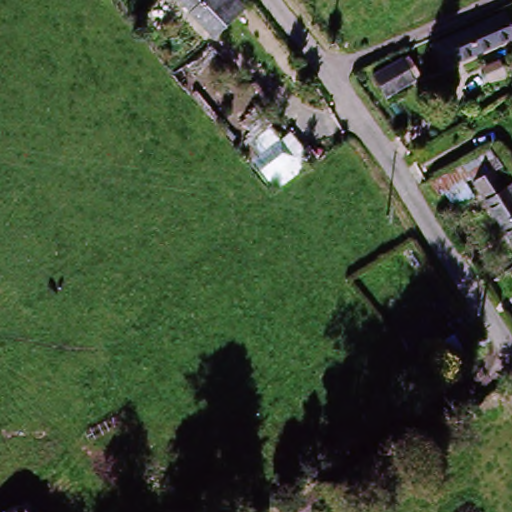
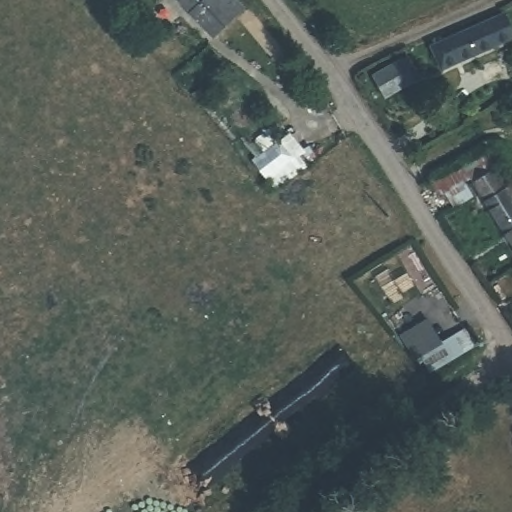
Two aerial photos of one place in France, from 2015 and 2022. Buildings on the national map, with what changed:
unchanged [(180,0),(215,0),(216,1),(196,18),(180,0)]
unchanged [(235,0),(245,13),(212,39),(196,18),(216,1),(218,0),(235,0)]
unchanged [(495,16),(508,43),(445,73),(432,46),(495,16)]
unchanged [(375,99),(365,79),(397,64),(408,83),(375,99)]
unchanged [(264,159),(285,143),(298,158),(277,175),(264,159)]
unchanged [(437,198),(427,185),(457,167),(465,180),(437,198)]
unchanged [(487,175),(500,194),(507,189),(512,197),(512,251),(470,185),(487,175)]
new [(440,340),(463,325),(475,345),(428,373),(418,356),(414,359),(399,332),(426,315),(440,340)]

